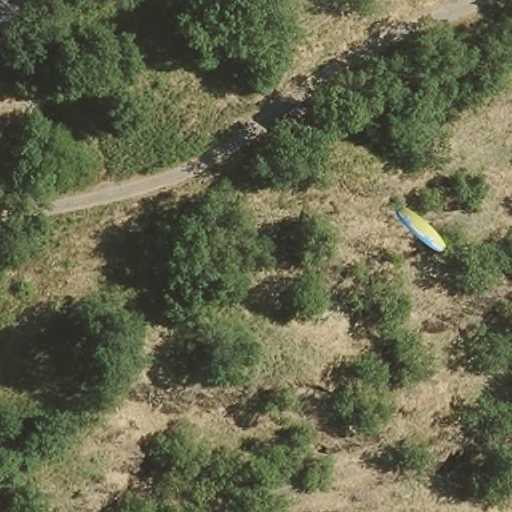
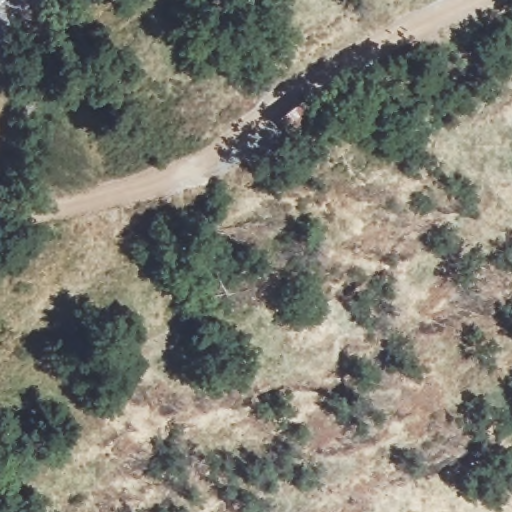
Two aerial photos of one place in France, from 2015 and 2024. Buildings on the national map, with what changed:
unchanged [(324,118),(303,136),(295,129),(286,134),(276,125),(308,96),(324,118)]

